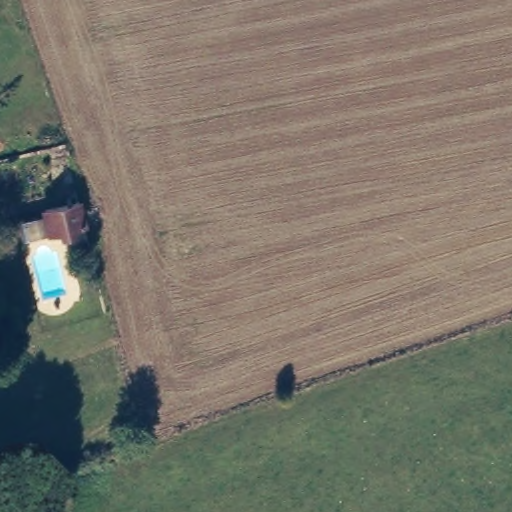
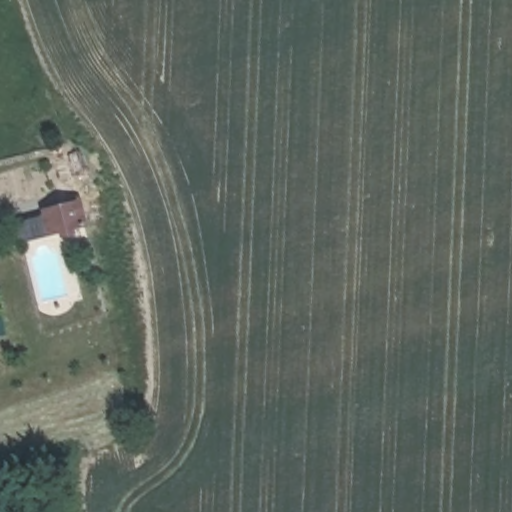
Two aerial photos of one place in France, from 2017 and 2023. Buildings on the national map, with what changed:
unchanged [(84,231),(43,239),(37,215),(82,207),(84,231)]

